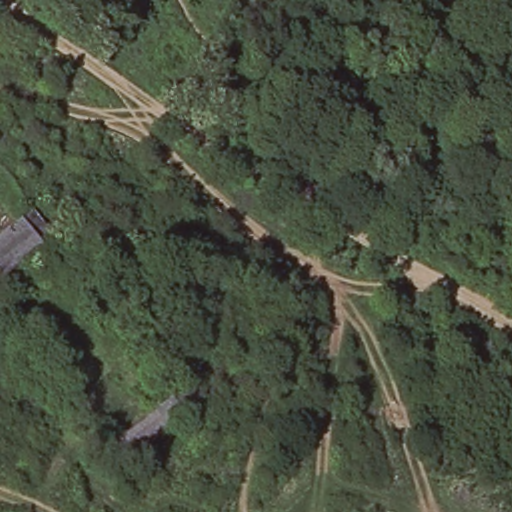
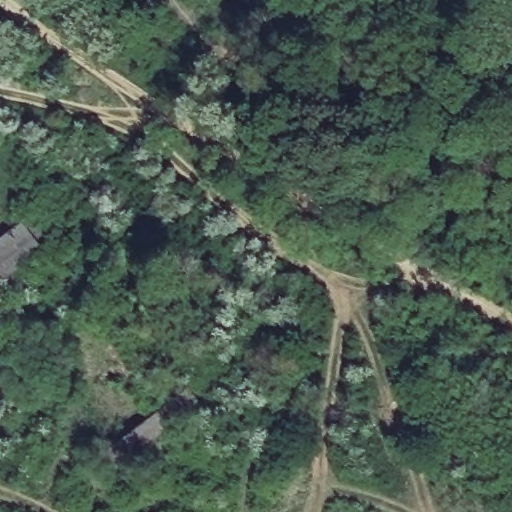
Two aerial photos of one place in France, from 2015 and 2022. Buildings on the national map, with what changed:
unchanged [(33,209),(54,237),(41,246),(0,277),(0,235),(20,217),(33,209)]
unchanged [(106,451),(172,396),(185,382),(200,402),(185,412),(119,466),(106,451)]

